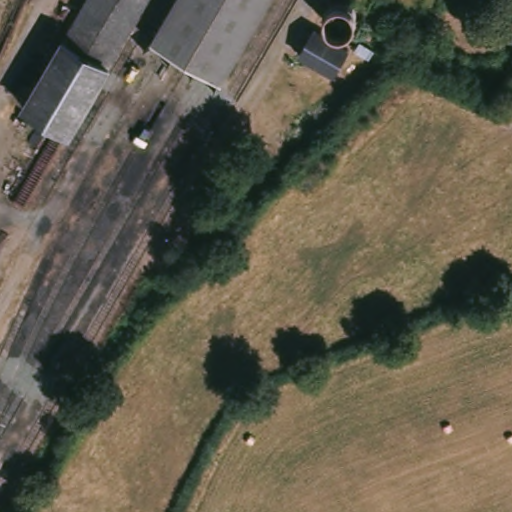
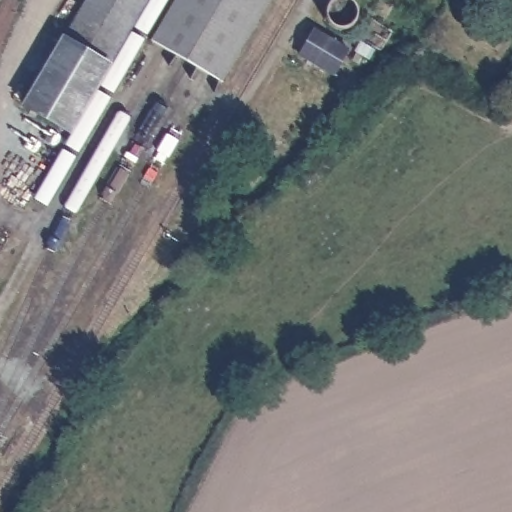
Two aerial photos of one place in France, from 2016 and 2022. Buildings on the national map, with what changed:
unchanged [(18,109),(81,0),(142,0),(64,136),(18,109)]
unchanged [(148,45),(174,0),(267,0),(217,86),(148,45)]
unchanged [(351,50),(333,82),(299,61),(310,30),(351,50)]

